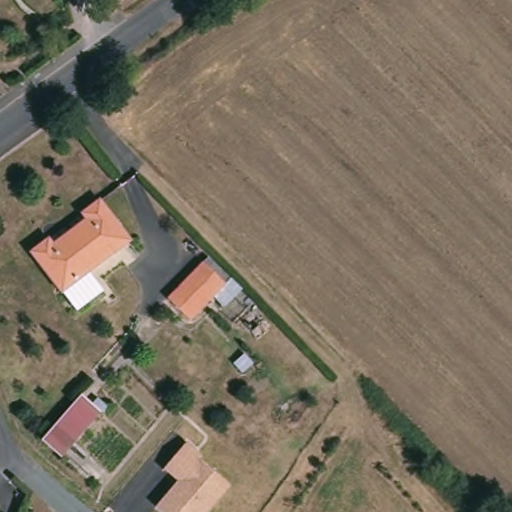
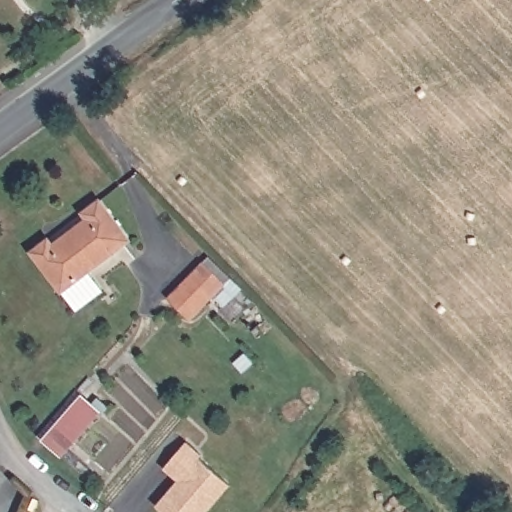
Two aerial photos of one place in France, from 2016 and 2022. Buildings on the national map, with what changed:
unchanged [(85,215),(104,201),(134,245),(95,272),(107,290),(76,312),(31,251),(50,240),(55,245),(90,221),(85,215)]
unchanged [(232,282),(198,317),(175,295),(210,260),(232,282)]
unchanged [(102,411),(62,453),(44,435),(81,393),(102,411)]
unchanged [(208,512),(158,512),(152,507),(175,480),(162,469),(185,442),(201,455),(199,458),(230,486),(208,512)]

